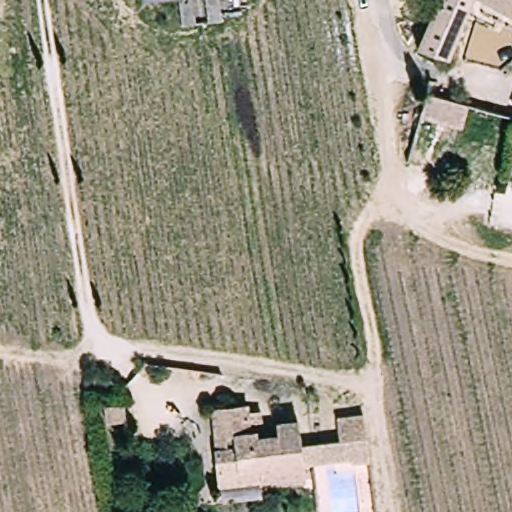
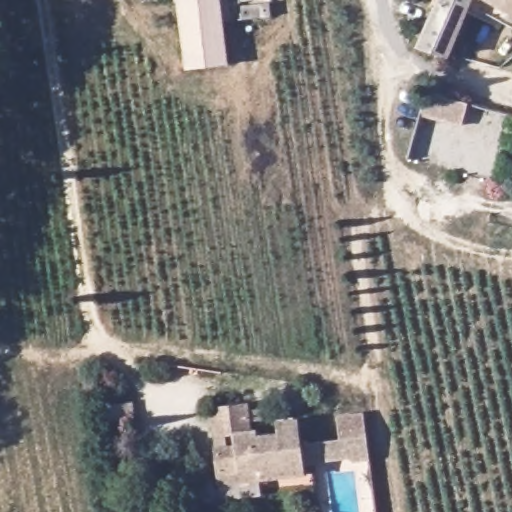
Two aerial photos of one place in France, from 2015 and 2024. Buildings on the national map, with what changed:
unchanged [(165,0),(149,2),(148,0),(165,0)]
new [(185,70),(176,0),(221,0),(229,64),(185,70)]
unchanged [(477,20),(468,15),(447,62),(428,55),(416,49),(416,47),(438,0),(512,0),(512,31),(480,14),(477,20)]
unchanged [(468,112),(462,135),(420,123),(426,100),(468,112)]
unchanged [(223,480),(216,414),(254,410),(257,436),(261,436),(262,441),(283,440),(282,428),(305,426),(307,448),(309,469),(310,483),(276,486),(224,491),(223,480)]
unchanged [(346,445),(343,422),(370,419),(370,420),(375,462),(309,469),(307,448),(346,445)]

